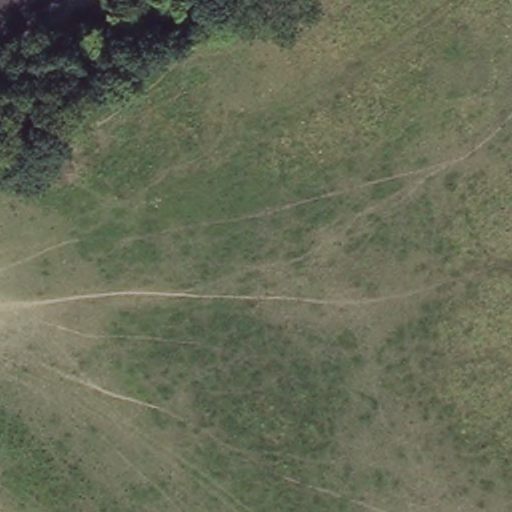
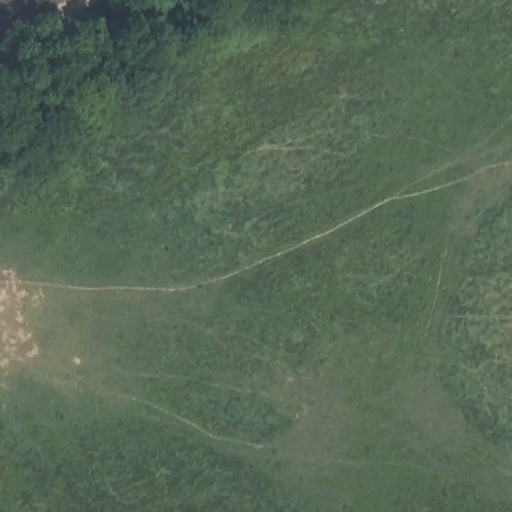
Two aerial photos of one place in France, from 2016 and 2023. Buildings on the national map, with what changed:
unchanged [(0,0),(61,0),(0,40),(0,0)]
unchanged [(164,2),(166,0),(189,0),(197,11),(181,23),(164,2)]

